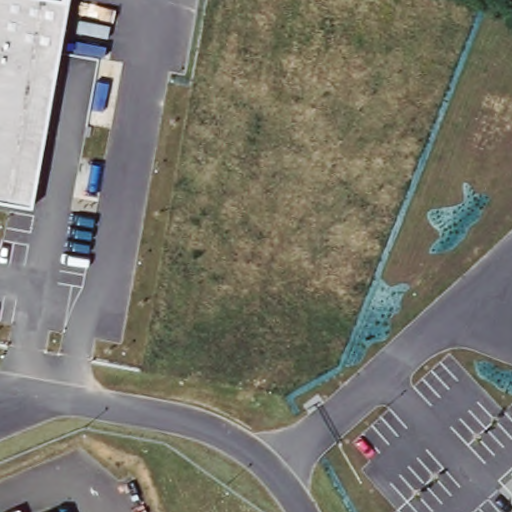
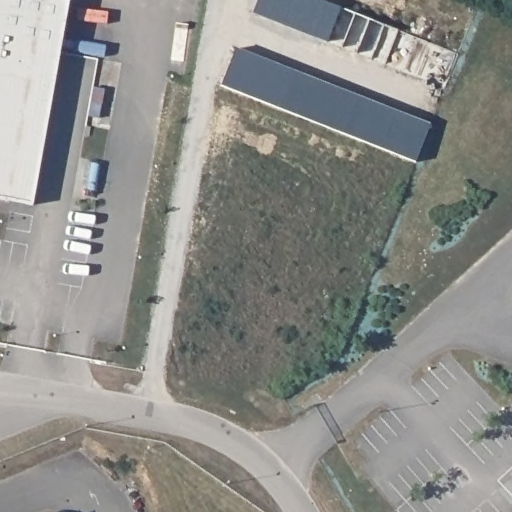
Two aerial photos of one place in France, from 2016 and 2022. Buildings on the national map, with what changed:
unchanged [(35,205),(0,200),(0,0),(71,0),(35,205)]
new [(236,48),(430,124),(415,162),(221,86),(236,48)]
unchanged [(58,512),(55,512),(57,511),(58,512)]

